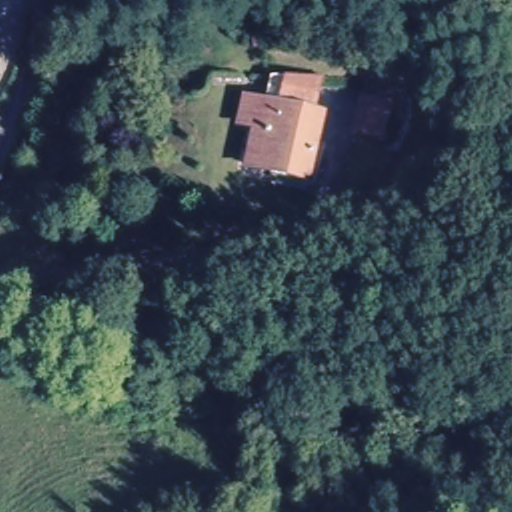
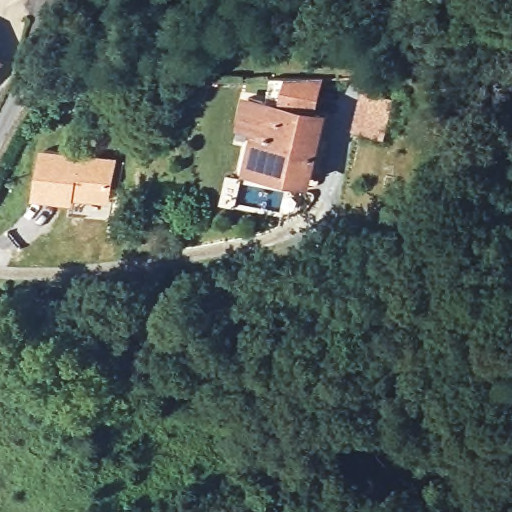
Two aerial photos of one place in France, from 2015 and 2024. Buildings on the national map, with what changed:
unchanged [(314,79),(305,115),(316,118),(304,181),(244,169),(253,127),(236,124),(240,101),(258,105),(280,109),(282,99),(287,79),(314,79)]
unchanged [(361,95),(388,101),(381,135),(354,130),(361,95)]
new [(43,146),(117,159),(109,206),(74,200),(73,202),(35,195),(43,146)]

